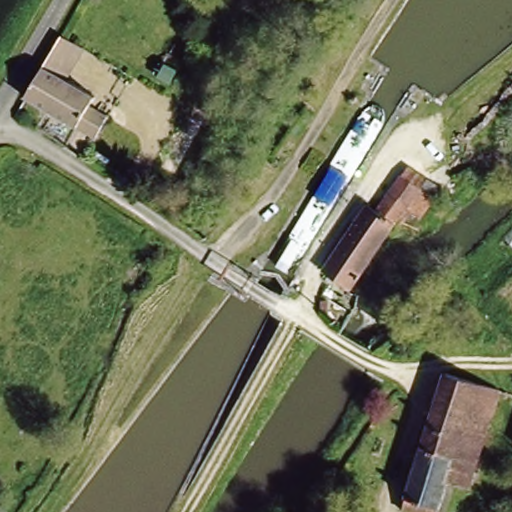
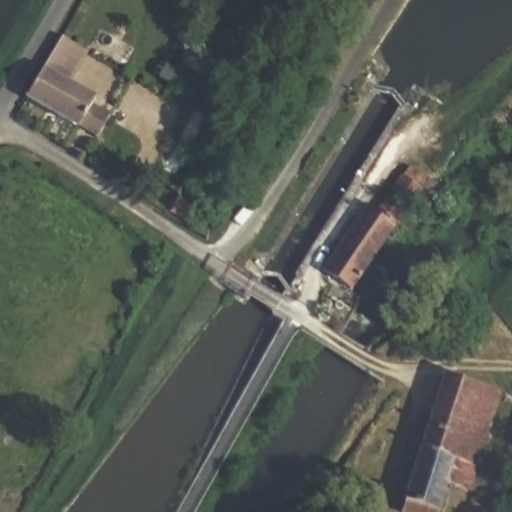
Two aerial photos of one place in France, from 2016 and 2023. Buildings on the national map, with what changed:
unchanged [(87,41),(62,72),(117,100),(99,136),(19,91),(59,29),(87,41)]
unchanged [(434,172),(425,184),(440,191),(414,227),(397,214),(347,285),(319,267),(370,199),(380,204),(410,162),(434,172)]
unchanged [(512,248),(504,239),(512,230),(512,248)]
unchanged [(470,490),(445,482),(437,512),(404,512),(397,510),(440,370),(501,387),(470,490)]

